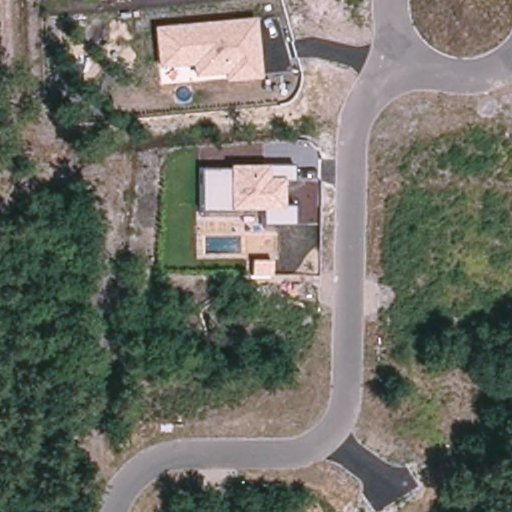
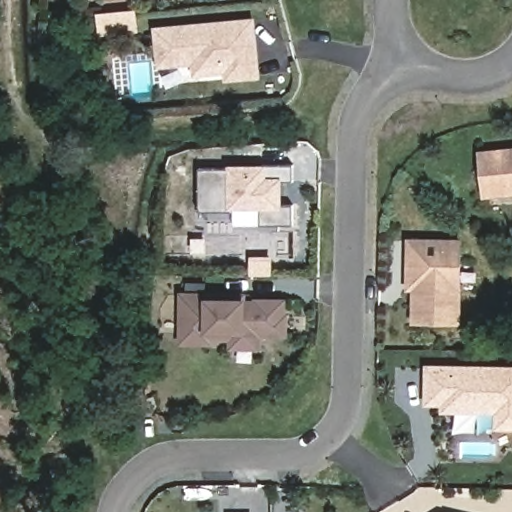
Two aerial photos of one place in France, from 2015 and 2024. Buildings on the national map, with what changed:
new [(138,9),(140,30),(122,31),(105,33),(103,13),(120,11),(138,9)]
unchanged [(224,73),(192,76),(191,64),(156,67),(152,27),(255,18),(260,77),(224,81),(224,73)]
new [(483,198),(478,151),(512,148),(512,194),(483,198)]
unchanged [(281,180),(281,206),(292,205),(293,224),(260,224),(259,209),(228,209),(200,210),(199,170),(226,169),(226,166),(267,165),(291,165),(292,180),(281,180)]
new [(462,325),(412,325),(412,291),(406,291),(408,238),(464,239),(462,325)]
new [(262,336),(262,349),(230,348),(230,339),(213,339),(212,344),(181,344),(181,291),(220,292),(221,298),(246,298),(288,298),(288,312),(290,312),(289,336),(262,336)]
new [(426,405),(427,364),(512,365),(512,430),(496,429),(496,415),(442,414),(443,405),(426,405)]

